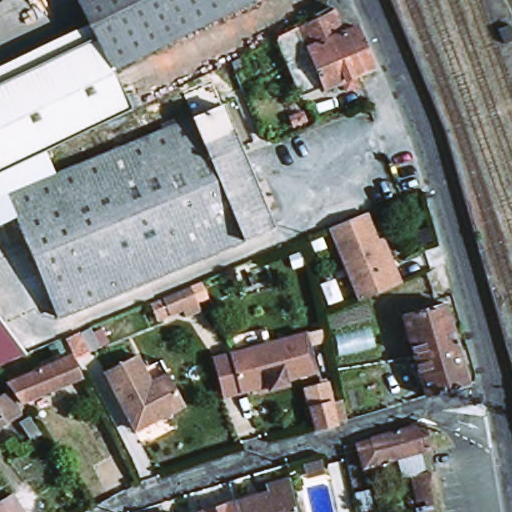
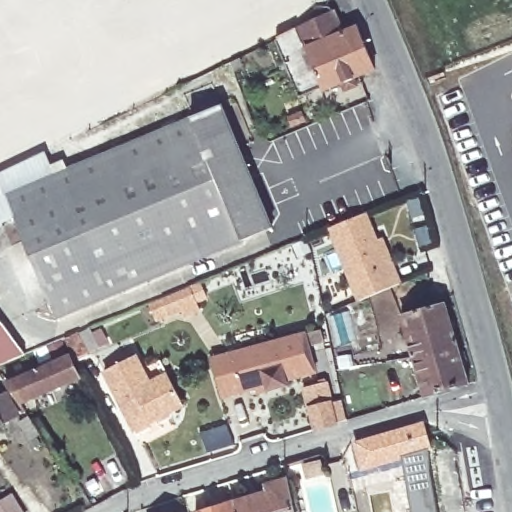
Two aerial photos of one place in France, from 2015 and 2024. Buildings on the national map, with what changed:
demolished [(73,0),(261,0),(218,21),(110,75),(130,115),(102,129),(90,135),(77,109),(55,63),(94,45),(88,31),(73,0)]
unchanged [(343,40),(359,34),(375,74),(324,94),(323,92),(299,101),(276,43),(278,42),(299,32),(333,15),(343,40)]
demolished [(77,109),(90,135),(47,155),(25,166),(1,177),(0,178),(0,90),(7,86),(55,63),(77,109)]
unchanged [(1,177),(25,166),(34,190),(225,111),(275,232),(60,320),(20,221),(0,231),(0,178),(1,177)]
unchanged [(390,272),(395,271),(402,289),(368,304),(362,306),(331,232),(350,225),(368,217),(390,272)]
unchanged [(196,309),(182,315),(180,308),(165,314),(159,297),(187,286),(196,309)]
unchanged [(436,395),(427,398),(422,382),(416,359),(405,317),(447,305),(459,348),(469,386),(436,395)]
unchanged [(28,357),(16,362),(0,369),(0,319),(28,357)]
unchanged [(69,340),(75,337),(80,335),(80,336),(89,332),(99,351),(90,356),(77,362),(72,352),(67,343),(66,341),(69,340)]
unchanged [(258,389),(240,394),(222,398),(213,359),(230,354),(306,335),(316,374),(286,382),(287,387),(268,392),(260,394),(258,389)]
unchanged [(184,410),(171,416),(134,434),(105,375),(136,359),(144,373),(150,387),(169,378),(184,410)]
unchanged [(5,387),(48,369),(70,360),(80,383),(20,407),(7,390),(5,387)]
unchanged [(313,426),(307,405),(328,398),(338,396),(344,415),(344,416),(335,418),(335,420),(313,426)]
unchanged [(19,418),(0,429),(0,401),(7,397),(19,418)]
unchanged [(41,437),(32,443),(20,426),(29,419),(41,437)]
unchanged [(435,455),(418,459),(368,474),(360,450),(386,442),(419,432),(426,429),(435,455)]
unchanged [(238,512),(236,503),(270,495),(268,489),(292,482),(299,512),(238,512)]
unchanged [(435,512),(424,512),(417,512),(411,488),(430,483),(430,484),(435,512)]
unchanged [(23,512),(0,512),(0,501),(12,494),(23,512)]
unchanged [(236,503),(238,512),(203,512),(225,506),(236,503)]

